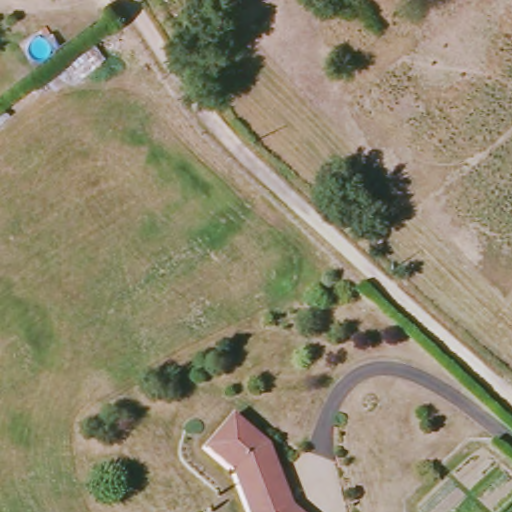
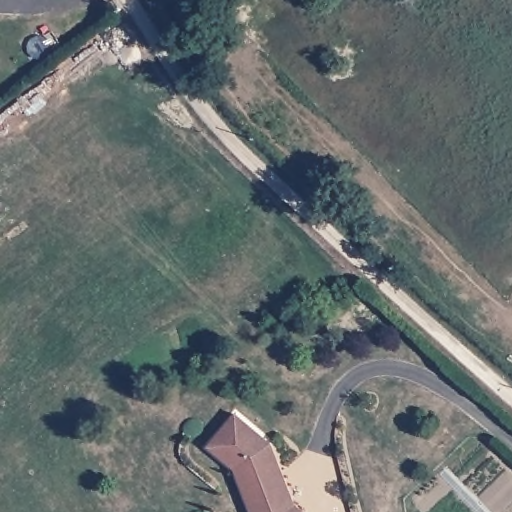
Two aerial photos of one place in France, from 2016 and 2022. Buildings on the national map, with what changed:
unchanged [(244,478),(213,449),(241,416),(272,443),(300,504),(309,512),(256,512),(253,504),(244,478)]

